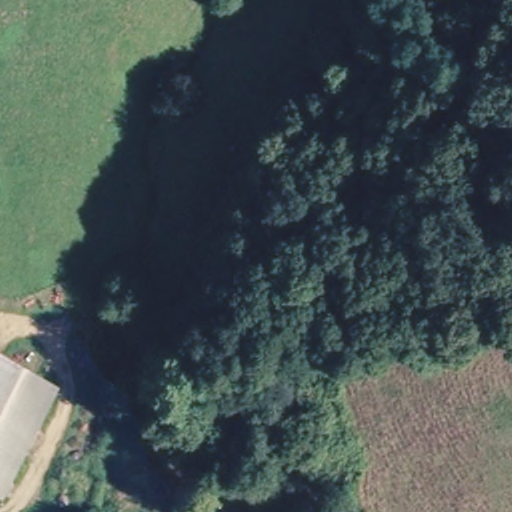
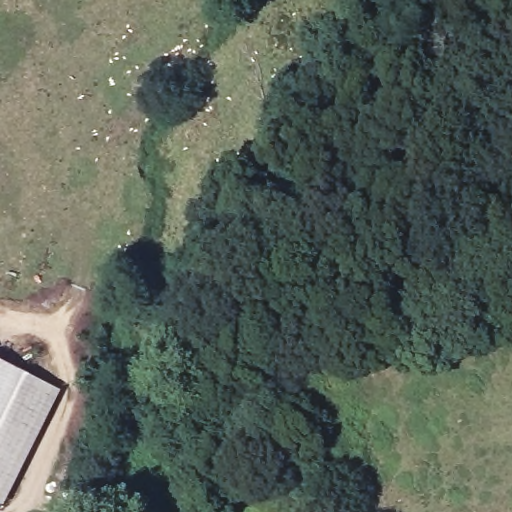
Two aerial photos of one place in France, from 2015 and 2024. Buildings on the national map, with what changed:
unchanged [(0,367),(35,389),(0,444),(0,367)]
unchanged [(69,410),(3,512),(0,512),(0,444),(35,389),(69,410)]

